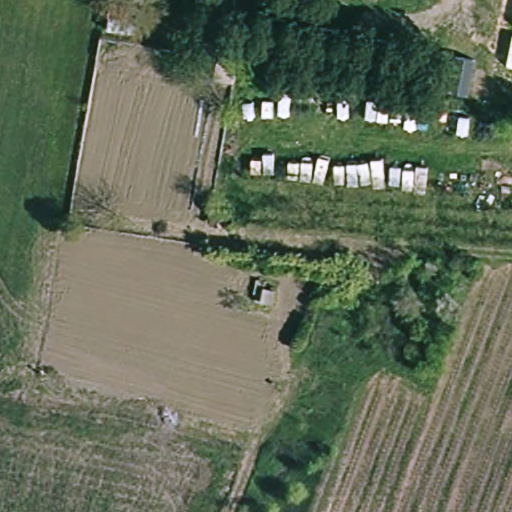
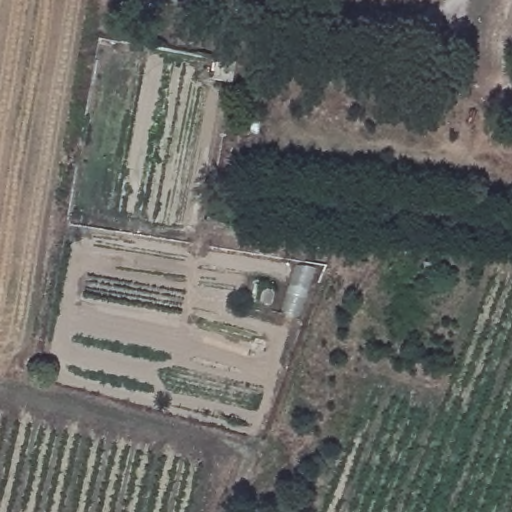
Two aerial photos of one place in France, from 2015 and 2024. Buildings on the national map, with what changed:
unchanged [(214,76),(217,56),(238,60),(235,80),(214,76)]
unchanged [(227,220),(210,217),(213,198),(230,201),(227,220)]

